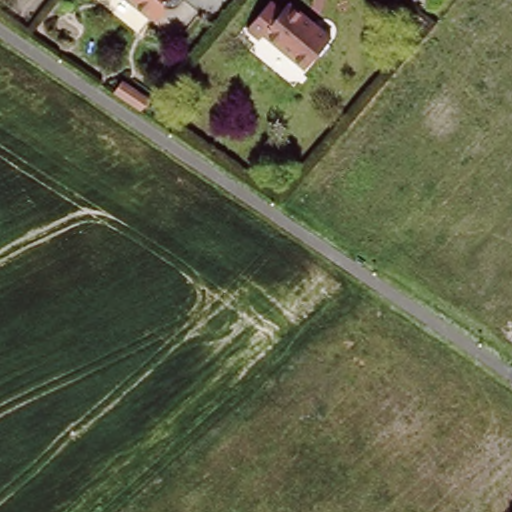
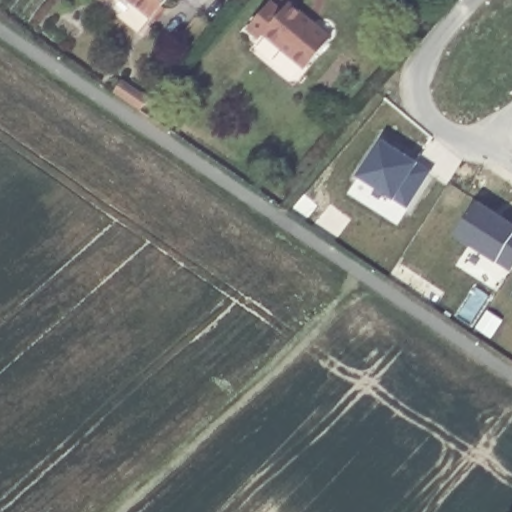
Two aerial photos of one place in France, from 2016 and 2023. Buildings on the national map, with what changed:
unchanged [(152,22),(121,0),(168,0),(152,22)]
unchanged [(312,23),(330,39),(311,62),(304,70),(263,36),(259,41),(245,30),(268,2),(280,12),(287,3),(303,17),(312,23)]
unchanged [(150,99),(139,110),(135,107),(113,93),(122,80),(150,99)]
new [(410,209),(396,200),(358,175),(382,137),(420,161),(434,170),(410,209)]
new [(512,224),(512,268),(510,271),(454,235),(476,201),(512,224)]

